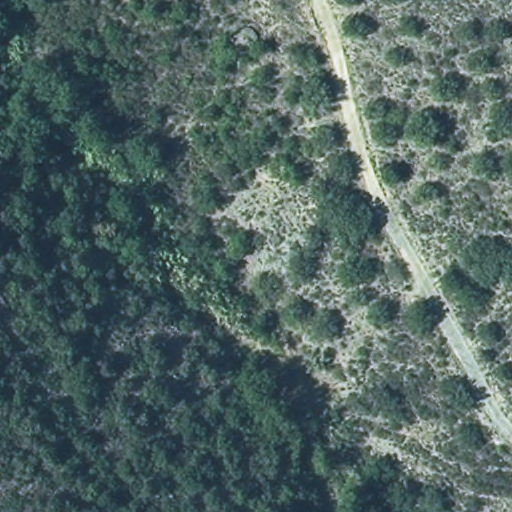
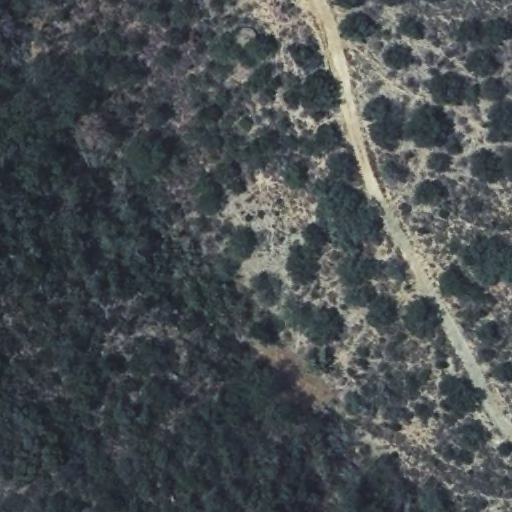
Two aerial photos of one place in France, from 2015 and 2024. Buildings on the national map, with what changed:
unchanged [(253,25),(254,46),(234,48),(229,30),(253,25)]

